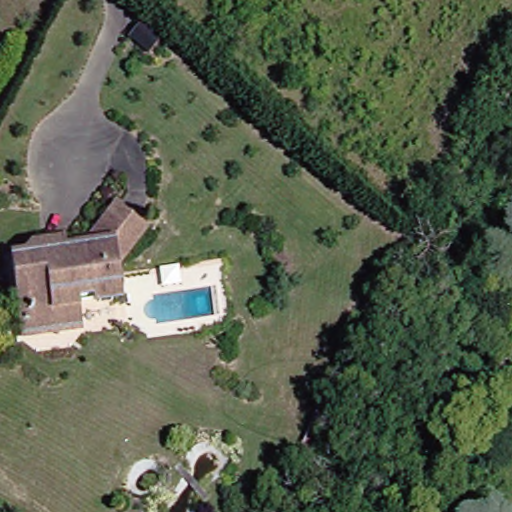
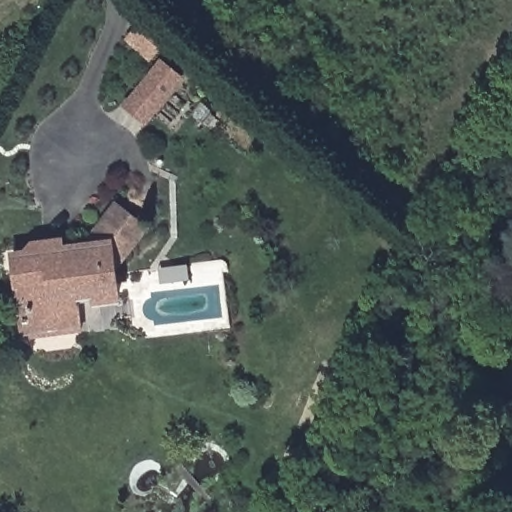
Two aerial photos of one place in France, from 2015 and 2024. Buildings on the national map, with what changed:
new [(161,60),(188,84),(147,129),(121,106),(161,60)]
unchanged [(19,321),(15,271),(14,254),(12,245),(87,239),(117,201),(150,226),(115,273),(117,298),(80,301),(80,303),(81,318),(81,327),(50,330),(20,332),(19,321)]
unchanged [(512,378),(510,377),(512,375),(512,378)]

